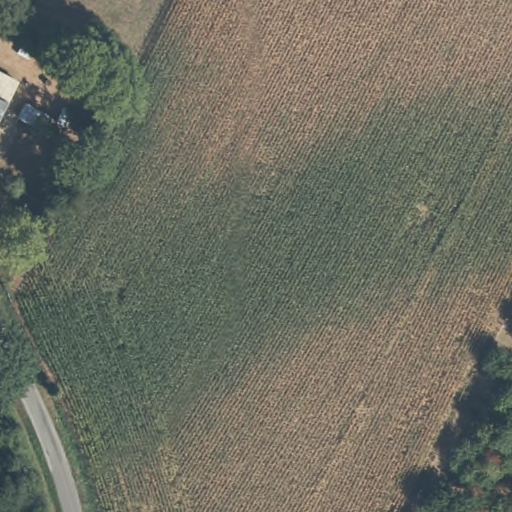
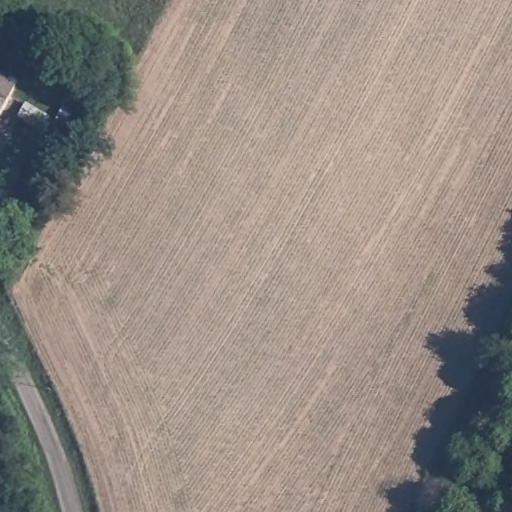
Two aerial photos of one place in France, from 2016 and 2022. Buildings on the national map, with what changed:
unchanged [(19,78),(0,112),(0,69),(19,78)]

